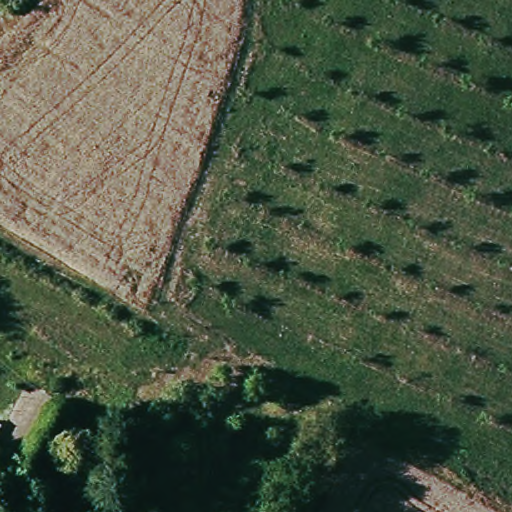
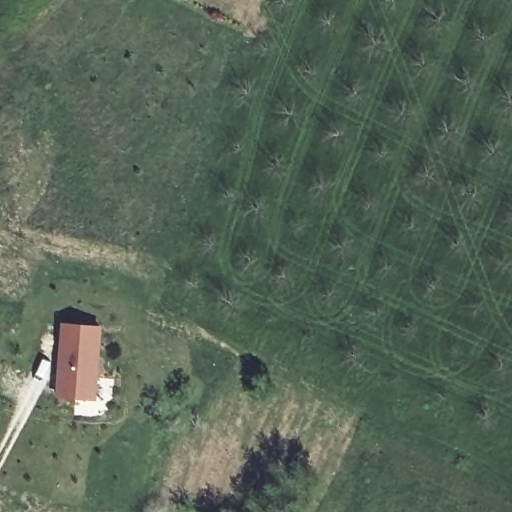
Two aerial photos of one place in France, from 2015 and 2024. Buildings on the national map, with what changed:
new [(98,401),(56,399),(61,324),(103,326),(98,401)]
demolished [(60,396),(72,376),(92,389),(81,410),(60,396)]

